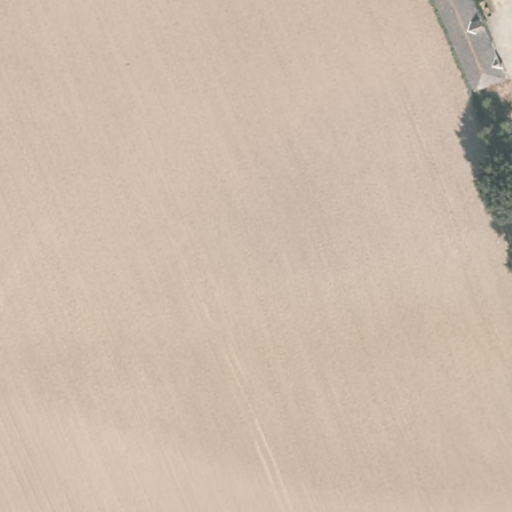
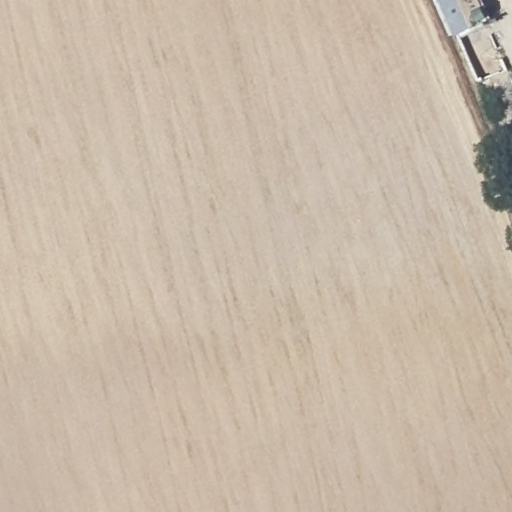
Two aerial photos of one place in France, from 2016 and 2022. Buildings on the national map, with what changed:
unchanged [(503,72),(473,83),(436,0),(473,0),(490,37),(503,72)]

